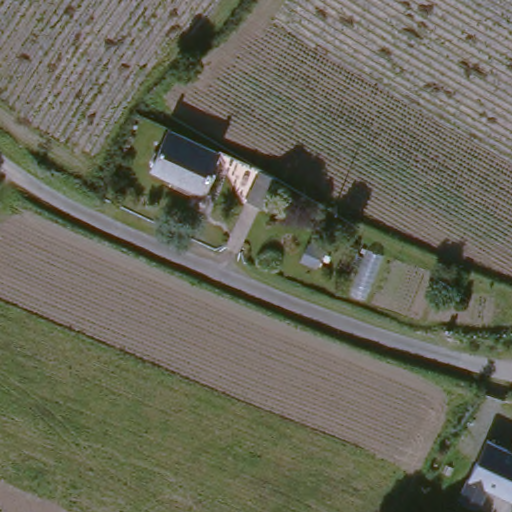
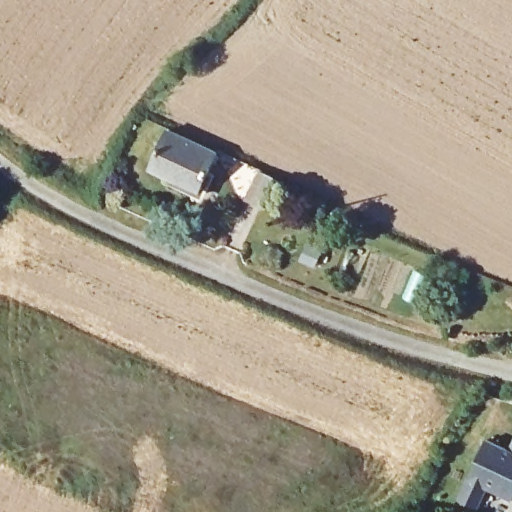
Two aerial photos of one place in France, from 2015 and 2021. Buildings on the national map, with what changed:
unchanged [(206,187),(156,165),(173,125),(223,148),(206,187)]
unchanged [(247,200),(260,171),(274,178),(261,207),(247,200)]
unchanged [(479,508),(457,498),(488,438),(509,447),(512,441),(512,498),(488,489),(479,508)]

